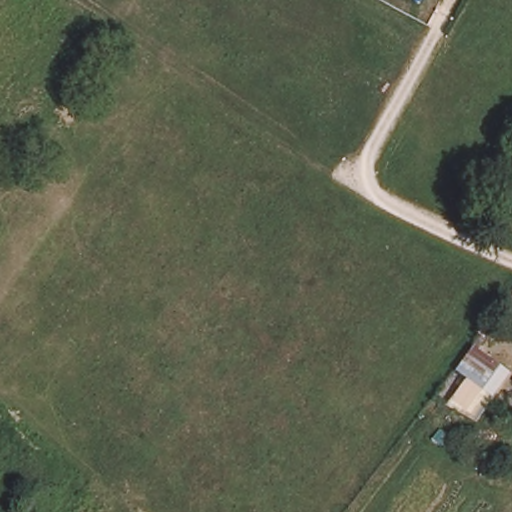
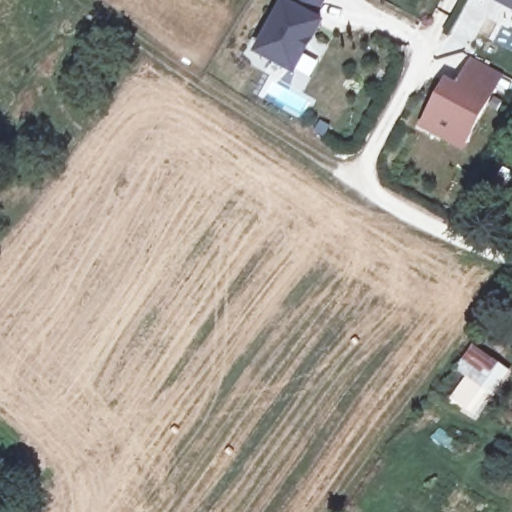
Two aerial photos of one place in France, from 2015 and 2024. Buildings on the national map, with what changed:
new [(327,22),(297,76),(254,53),(282,0),(327,0),(319,17),(327,22)]
new [(512,2),(508,0),(512,0),(512,2)]
new [(445,133),(420,120),(445,75),(457,81),(465,67),(472,54),(500,70),(493,83),(469,126),(460,142),(445,133)]
unchanged [(497,364),(485,380),(458,361),(470,345),(497,364)]

